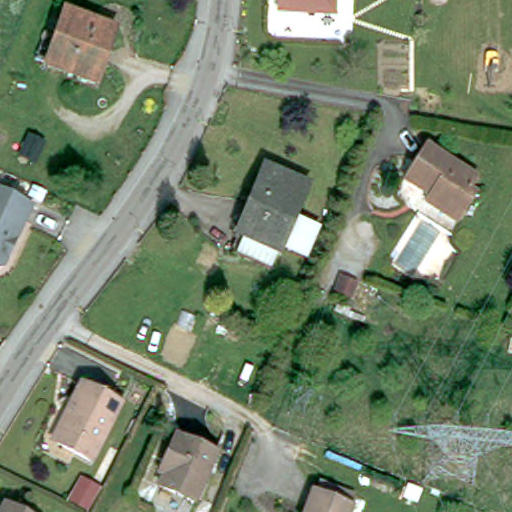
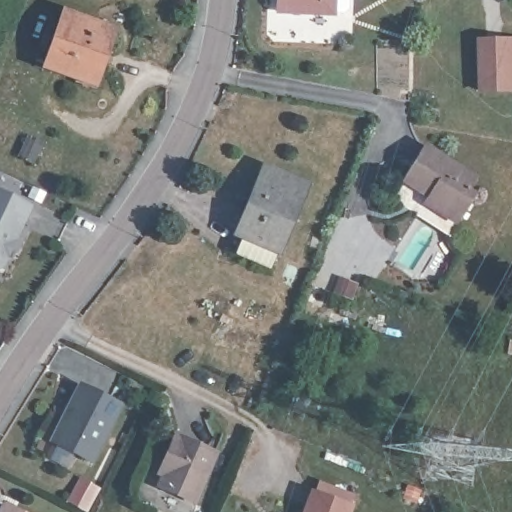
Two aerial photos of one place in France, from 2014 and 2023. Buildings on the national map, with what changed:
unchanged [(345,14),(280,12),(280,0),(351,0),(351,9),(345,14)]
unchanged [(118,28),(101,79),(51,61),(69,10),(118,28)]
new [(512,37),(512,92),(478,92),(476,38),(512,37)]
unchanged [(426,215),(438,197),(431,193),(438,182),(433,178),(428,183),(409,171),(430,137),(483,171),(477,180),(483,184),(468,209),(464,214),(453,232),(426,215)]
unchanged [(308,255),(282,245),(271,270),(238,255),(243,241),(238,239),(266,174),(304,189),(291,220),(319,231),(308,255)]
unchanged [(6,270),(0,272),(0,192),(35,208),(6,270)]
unchanged [(91,462),(56,445),(67,423),(63,420),(81,386),(119,406),(91,462)]
unchanged [(194,502),(159,487),(171,460),(166,457),(175,437),(215,454),(194,502)]
unchanged [(314,496),(316,497),(321,487),(353,500),(349,508),(348,512),(308,512),(314,496)]
unchanged [(22,512),(6,512),(9,506),(22,512)]

